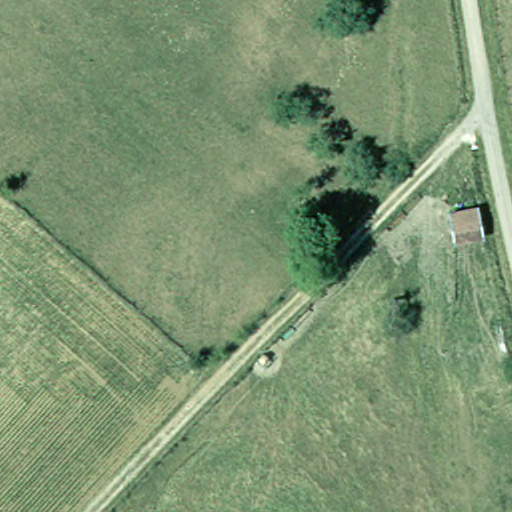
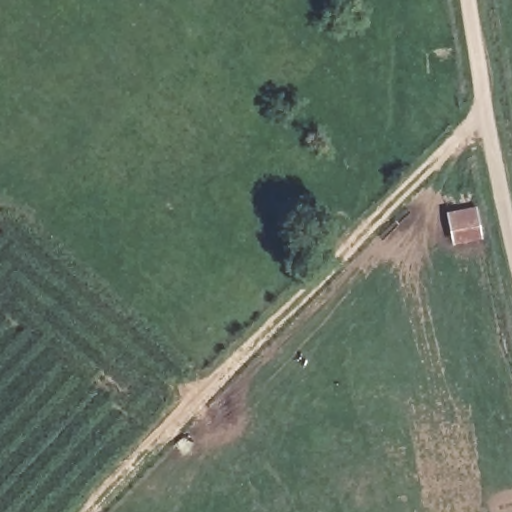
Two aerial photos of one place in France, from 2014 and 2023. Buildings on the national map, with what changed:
unchanged [(473,227),(450,231),(447,212),(470,209),(473,227)]

